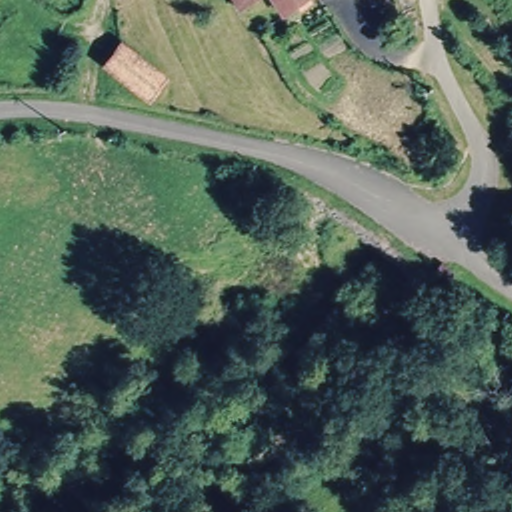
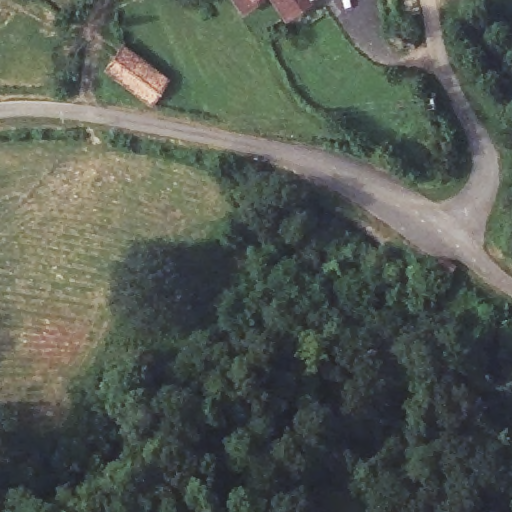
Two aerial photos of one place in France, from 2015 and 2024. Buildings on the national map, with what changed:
unchanged [(241,7),(235,0),(249,0),(246,3),(241,7)]
unchanged [(271,0),(294,0),(281,11),(271,0)]
unchanged [(119,50),(165,80),(151,104),(126,87),(105,74),(119,50)]

